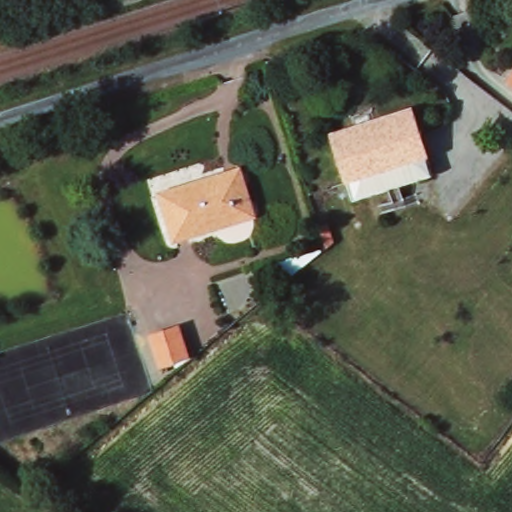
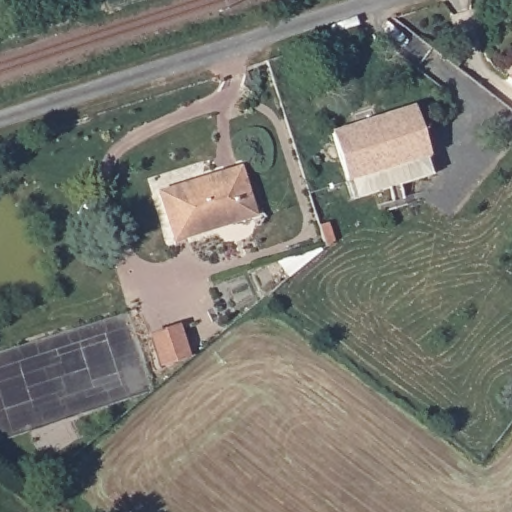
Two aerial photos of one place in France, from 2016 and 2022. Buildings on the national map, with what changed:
unchanged [(388,165),(393,182),(392,182),(358,195),(335,129),(361,120),(414,102),(417,109),(431,150),(388,165)]
unchanged [(405,179),(409,191),(418,188),(421,197),(391,207),(388,198),(397,195),(392,182),(393,182),(388,165),(431,150),(437,168),(405,179)]
unchanged [(257,213),(179,239),(165,195),(242,169),(257,213)]
unchanged [(333,244),(325,246),(318,225),(326,223),(333,244)]

